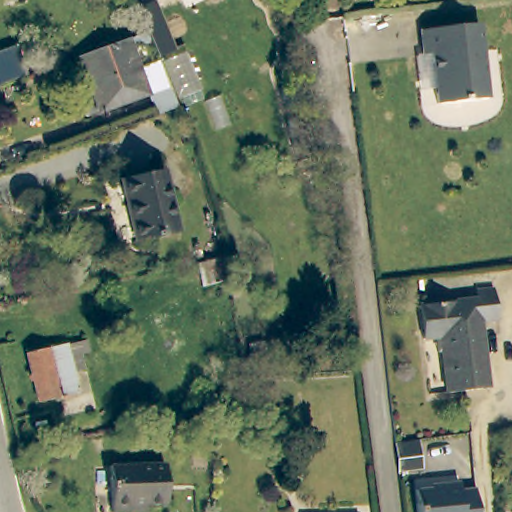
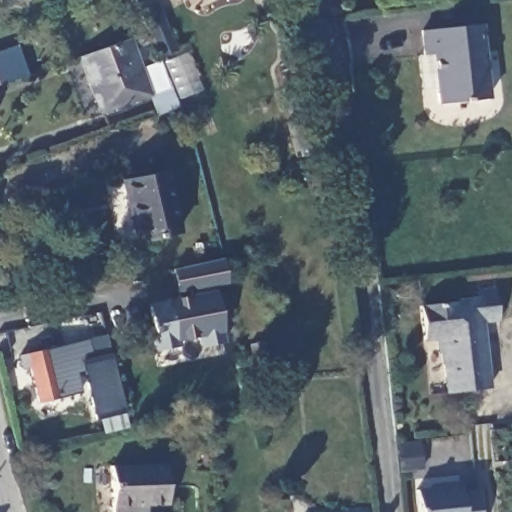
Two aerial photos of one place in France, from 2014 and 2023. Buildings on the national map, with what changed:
unchanged [(481,25),(490,96),(443,102),(437,53),(426,54),(423,32),(481,25)]
unchanged [(134,70),(144,99),(104,114),(85,57),(125,44),(134,70)]
unchanged [(164,61),(184,111),(162,121),(152,101),(145,104),(144,99),(134,70),(164,61)]
unchanged [(122,180),(166,171),(179,231),(136,240),(122,180)]
new [(222,260),(227,284),(211,288),(222,342),(201,347),(198,335),(177,340),(179,347),(154,352),(148,329),(152,328),(148,305),(189,297),(188,291),(177,293),(174,271),(222,260)]
unchanged [(499,320),(482,322),(489,387),(448,392),(442,337),(424,338),(421,306),(479,300),(478,290),(496,288),(499,320)]
unchanged [(82,359),(85,375),(75,377),(79,396),(39,406),(28,359),(87,345),(90,357),(82,359)]
unchanged [(227,382),(242,378),(247,402),(249,402),(252,417),(212,425),(209,411),(232,406),(227,382)]
unchanged [(197,416),(199,426),(180,430),(177,420),(197,416)]
unchanged [(399,467),(397,444),(396,440),(416,438),(416,442),(418,466),(399,467)]
unchanged [(164,465),(166,506),(146,507),(146,512),(111,512),(110,467),(164,465)]
unchanged [(442,486),(442,482),(461,481),(462,488),(477,487),(478,498),(479,512),(419,512),(417,488),(442,486)]

